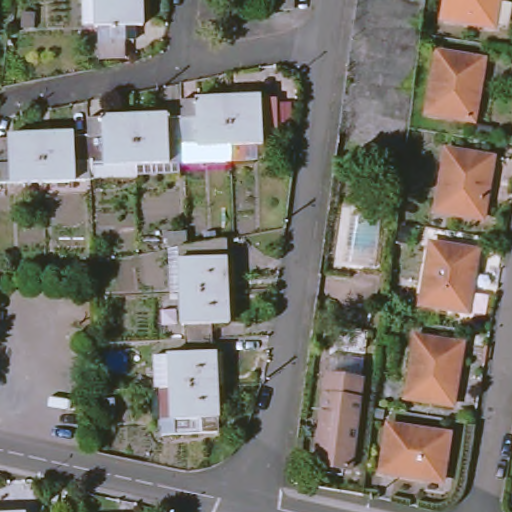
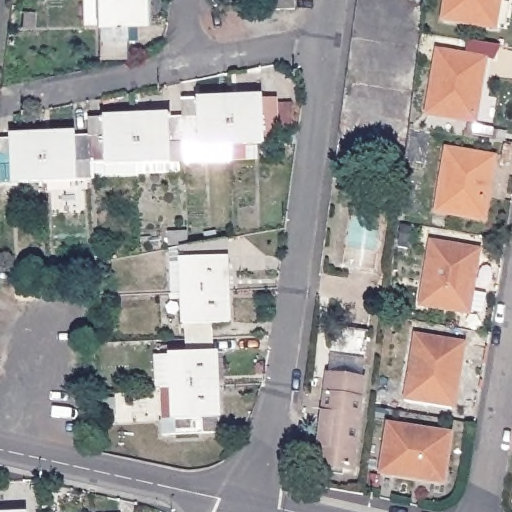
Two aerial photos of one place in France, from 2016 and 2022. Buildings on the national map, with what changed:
unchanged [(124,25),(125,56),(100,58),(98,25),(83,25),(83,0),(143,0),(143,24),(124,25)]
unchanged [(294,0),(294,7),(273,9),(272,0),(294,0)]
unchanged [(446,0),(498,0),(494,26),(444,18),(446,0)]
unchanged [(428,114),(438,52),(484,60),(474,121),(428,114)]
unchanged [(183,116),(181,100),(228,98),(230,144),(198,147),(198,143),(183,144),(183,116)]
unchanged [(228,98),(261,98),(261,99),(274,99),(276,126),(262,126),(262,143),(230,144),(228,98)]
unchanged [(134,118),(183,116),(183,144),(184,163),(179,163),(179,172),(137,176),(134,118)]
unchanged [(89,137),(88,119),(134,118),(137,176),(91,179),(89,137)]
unchanged [(40,135),(74,134),(75,137),(89,137),(91,179),(43,181),(40,135)]
unchanged [(7,139),(7,136),(40,135),(43,181),(0,183),(0,140),(7,139)]
unchanged [(437,211),(447,150),(492,158),(484,218),(437,211)]
unchanged [(173,223),(191,222),(192,234),(173,235),(173,223)]
unchanged [(230,230),(233,280),(186,283),(176,283),(174,240),(193,236),(230,230)]
unchanged [(422,304),(431,243),(479,251),(468,311),(422,304)]
unchanged [(233,280),(233,310),(216,311),(217,328),(191,329),(190,314),(186,314),(186,283),(233,280)]
unchanged [(369,330),(365,357),(329,350),(332,327),(369,330)]
unchanged [(217,328),(218,342),(221,342),(222,375),(165,377),(161,377),(160,346),(191,345),(191,329),(217,328)]
unchanged [(407,398),(418,337),(463,344),(454,404),(407,398)]
unchanged [(366,373),(354,477),(306,468),(323,369),(366,373)]
unchanged [(222,375),(224,422),(167,425),(165,377),(222,375)]
unchanged [(381,473),(388,425),(451,434),(444,481),(381,473)]
unchanged [(25,510),(25,512),(0,512),(0,511),(25,510)]

